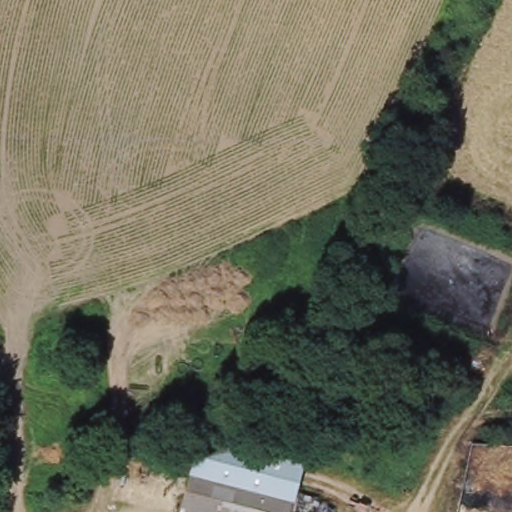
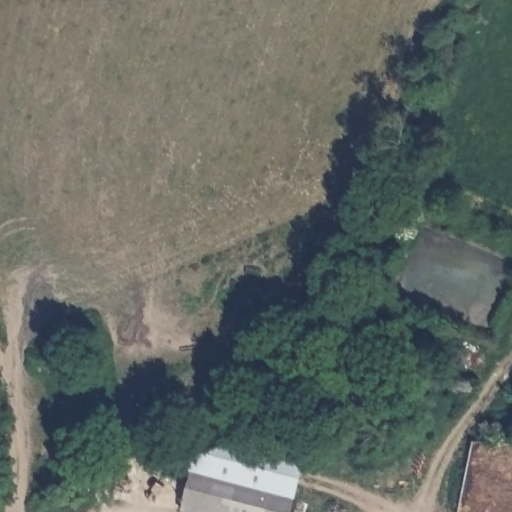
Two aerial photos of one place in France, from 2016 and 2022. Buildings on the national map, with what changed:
unchanged [(232,440),(298,454),(287,512),(195,512),(183,509),(190,455),(224,440),(232,440)]

